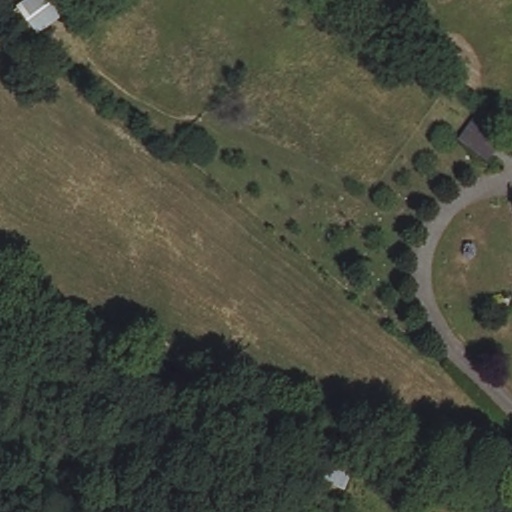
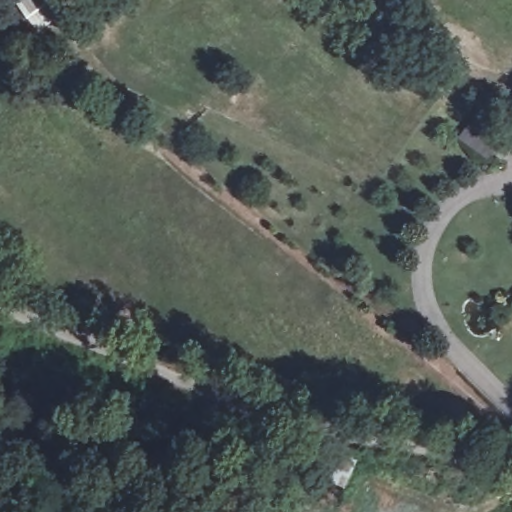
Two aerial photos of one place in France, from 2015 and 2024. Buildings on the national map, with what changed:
unchanged [(480,112),(509,134),(487,162),(459,140),(480,112)]

